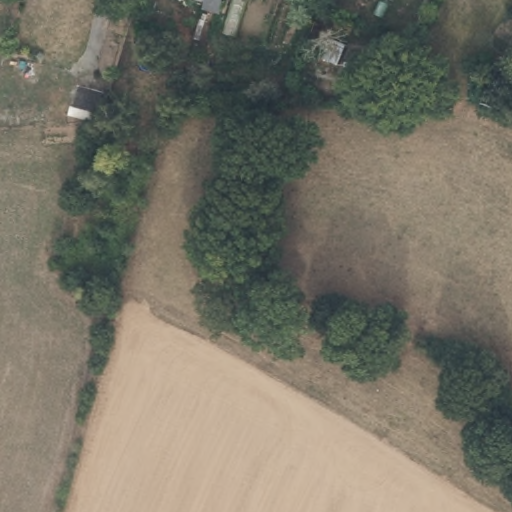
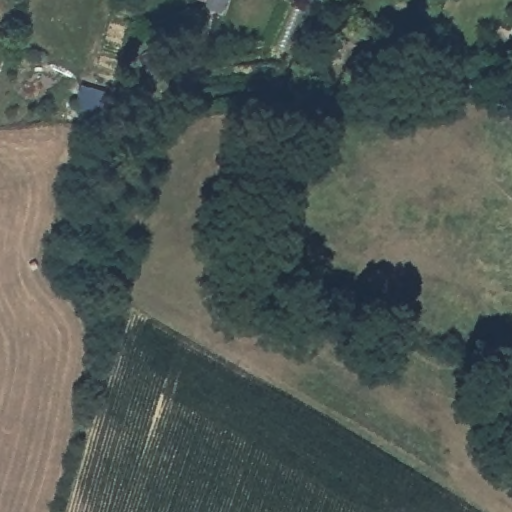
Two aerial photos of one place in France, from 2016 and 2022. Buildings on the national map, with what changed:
unchanged [(206,9),(187,6),(189,0),(208,0),(206,9)]

